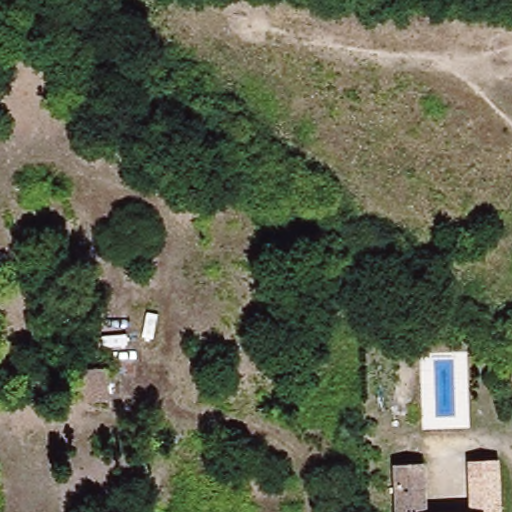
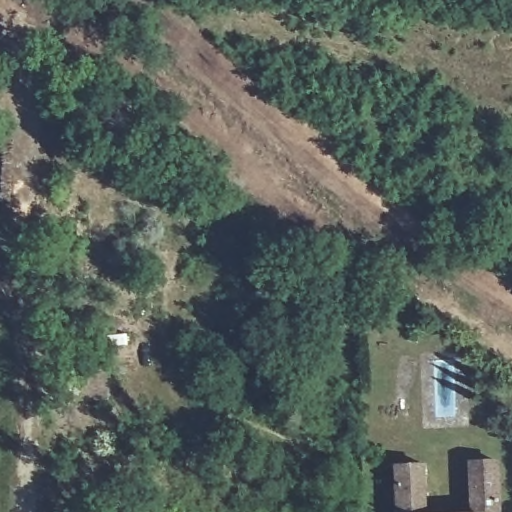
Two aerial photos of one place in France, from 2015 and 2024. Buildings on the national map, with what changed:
unchanged [(74,370),(107,370),(108,400),(74,401),(74,370)]
unchanged [(498,462),(500,512),(473,512),(471,463),(498,462)]
unchanged [(399,512),(397,465),(423,464),(425,512),(399,512)]

